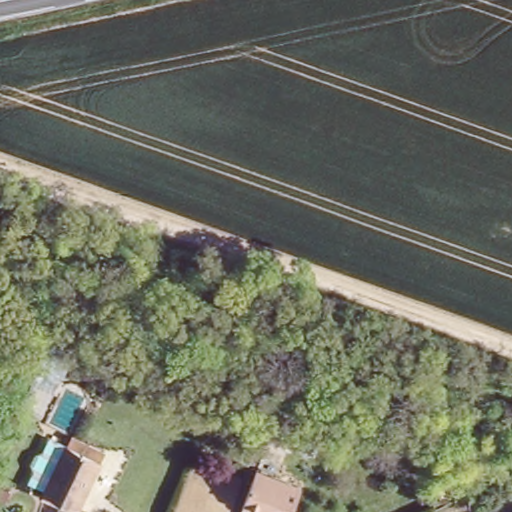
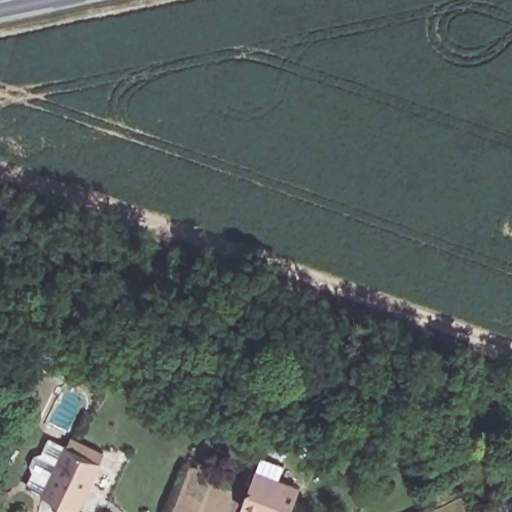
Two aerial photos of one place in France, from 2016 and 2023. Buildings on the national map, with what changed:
unchanged [(30,469),(28,464),(34,452),(41,450),(49,433),(65,442),(62,451),(47,495),(25,484),(30,469)]
unchanged [(62,451),(99,465),(83,512),(69,512),(44,502),(62,451)]
unchanged [(295,512),(243,512),(256,472),(303,490),(295,512)]

